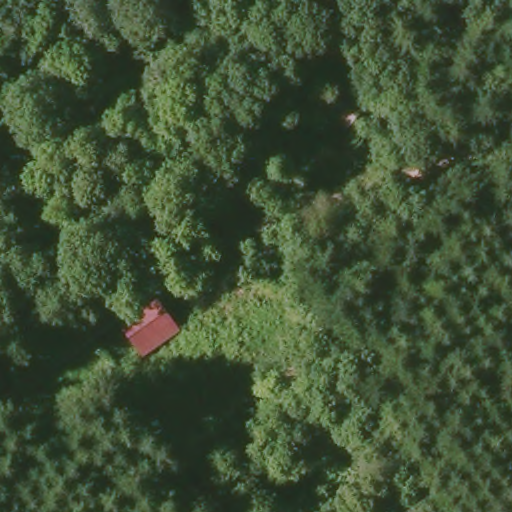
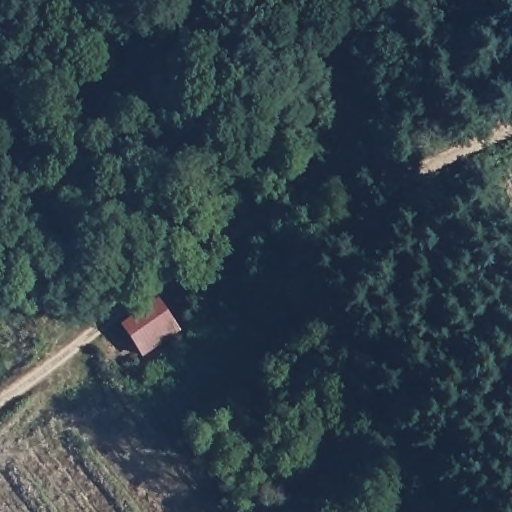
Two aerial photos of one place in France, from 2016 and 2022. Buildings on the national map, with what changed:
unchanged [(341,125),(320,121),(295,94),(311,76),(321,65),(334,73),(352,85),(367,98),(341,125)]
unchanged [(189,341),(153,364),(129,332),(162,308),(189,341)]

